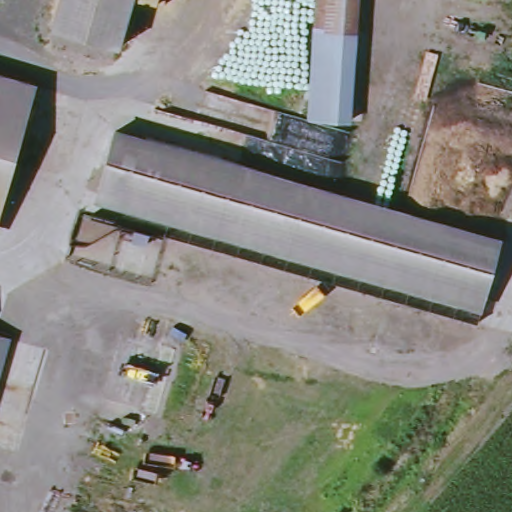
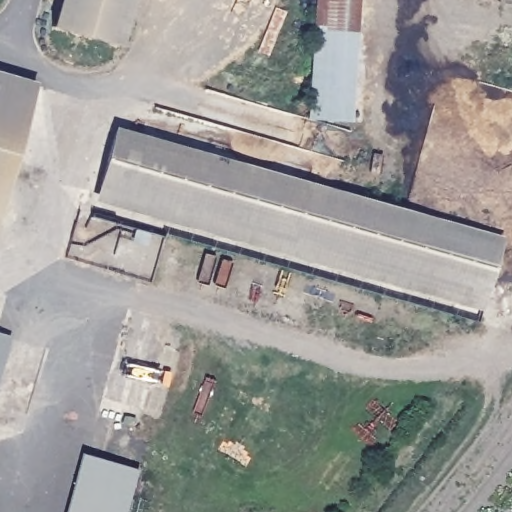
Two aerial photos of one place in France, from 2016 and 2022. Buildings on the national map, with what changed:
unchanged [(121,47),(50,30),(58,0),(134,0),(121,47)]
unchanged [(310,125),(317,0),(359,0),(352,126),(310,125)]
unchanged [(31,85),(0,194),(0,76),(31,85)]
unchanged [(93,196),(110,136),(495,245),(477,306),(93,196)]
unchanged [(11,341),(0,381),(0,338),(11,341)]
new [(139,474),(129,512),(72,512),(86,460),(139,474)]

